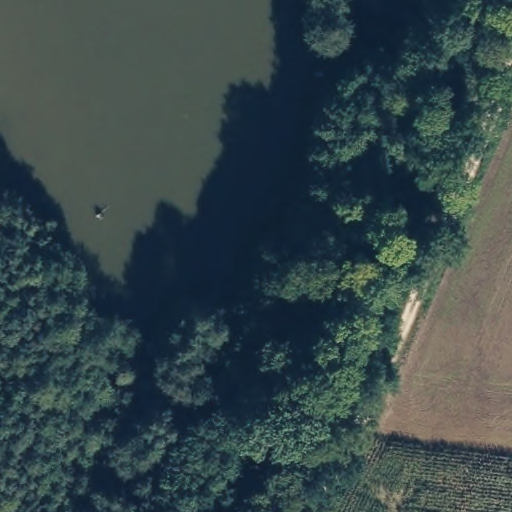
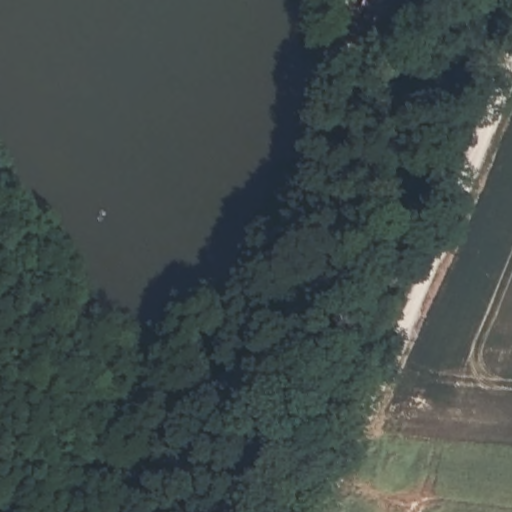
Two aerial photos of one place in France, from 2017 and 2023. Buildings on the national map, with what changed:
unchanged [(470,37),(408,14),(416,0),(473,0),(482,2),(470,37)]

